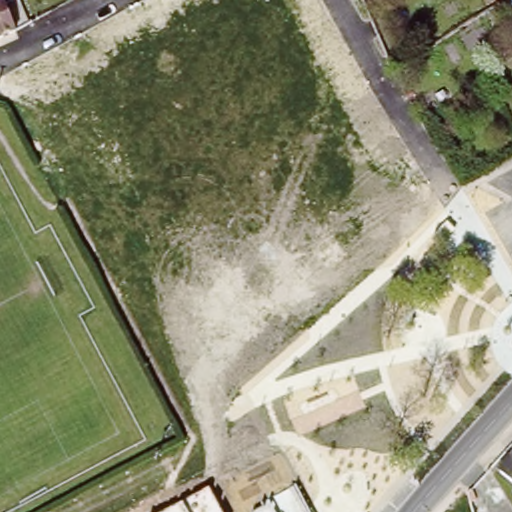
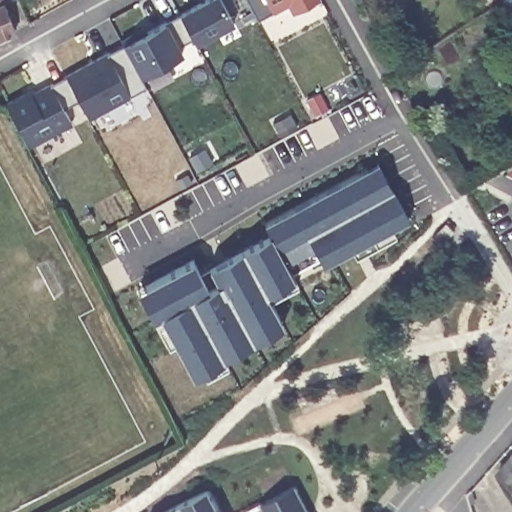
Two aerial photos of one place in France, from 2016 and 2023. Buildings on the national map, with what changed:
new [(193,37),(179,46),(183,54),(140,77),(145,87),(128,95),(129,97),(90,117),(79,98),(63,106),(72,124),(30,146),(7,102),(31,89),(33,92),(49,83),(124,42),(202,0),(221,0),(233,23),(196,42),(193,37)]
new [(290,4),(273,12),(258,19),(248,0),(318,0),(294,14),(290,4)]
unchanged [(0,35),(0,6),(10,30),(0,35)]
new [(320,92),(329,108),(315,115),(307,100),(320,92)]
new [(291,114),(297,127),(280,135),(274,123),(291,114)]
new [(206,149),(213,163),(198,170),(191,157),(206,149)]
new [(324,264),(316,247),(286,261),(296,278),(264,294),(281,325),(193,374),(163,313),(153,319),(137,290),(192,260),(206,287),(218,282),(209,266),(272,233),(266,223),(379,162),(409,220),(324,264)]
new [(186,173),(191,182),(181,188),(176,179),(186,173)]
unchanged [(504,474),(499,470),(501,468),(512,456),(512,482),(504,474)]
new [(264,507),(261,503),(296,485),(310,512),(255,512),(264,507)]
new [(209,489),(221,512),(166,512),(209,489)]

